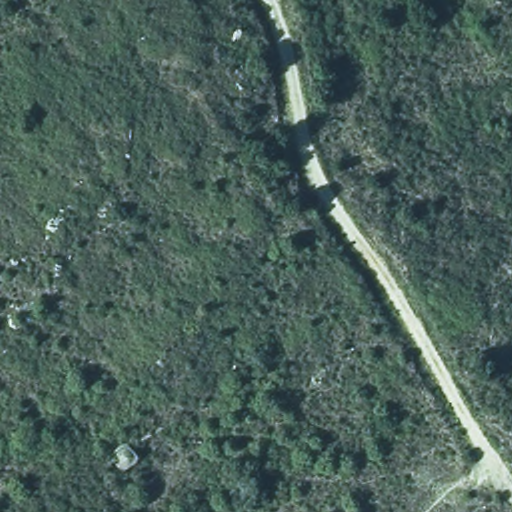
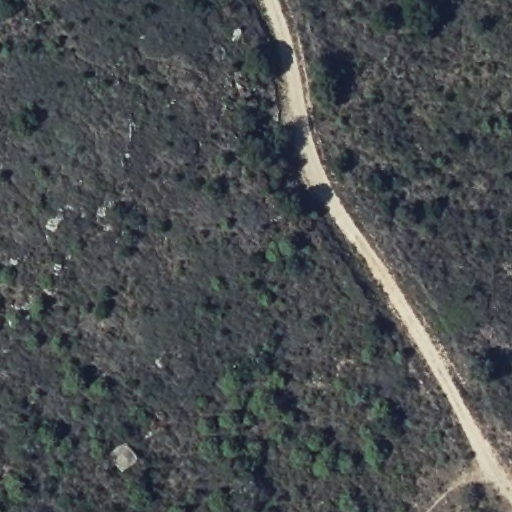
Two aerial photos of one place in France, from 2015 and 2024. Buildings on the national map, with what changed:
unchanged [(119,466),(109,454),(127,442),(130,447),(142,462),(125,473),(119,466)]

